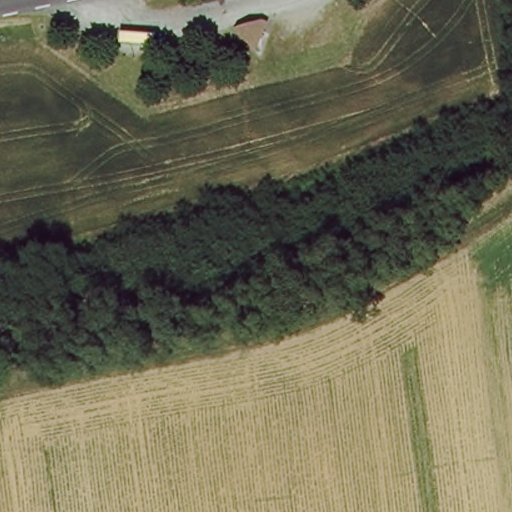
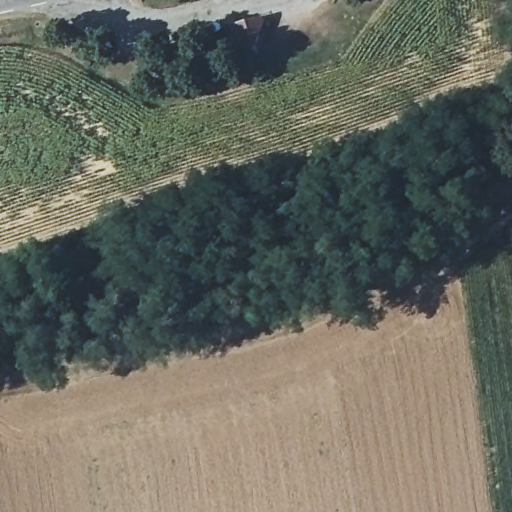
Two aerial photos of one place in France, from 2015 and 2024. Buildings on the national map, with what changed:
unchanged [(267,21),(259,55),(229,34),(267,21)]

